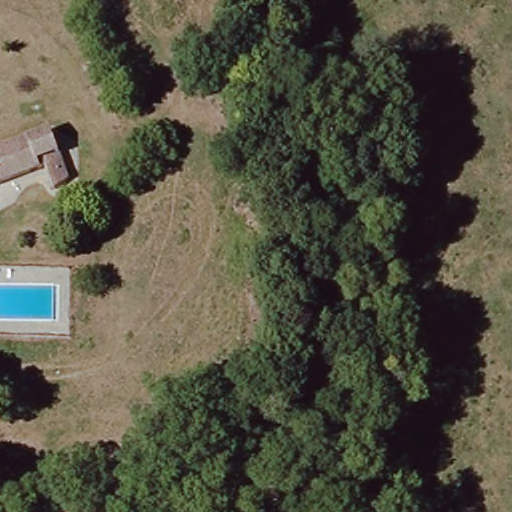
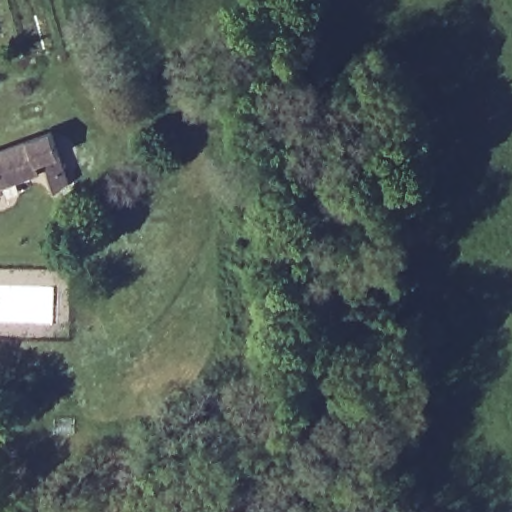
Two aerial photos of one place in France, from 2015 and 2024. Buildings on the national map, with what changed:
unchanged [(41,155),(26,160),(29,171),(0,182),(0,150),(56,128),(76,180),(56,188),(41,155)]

